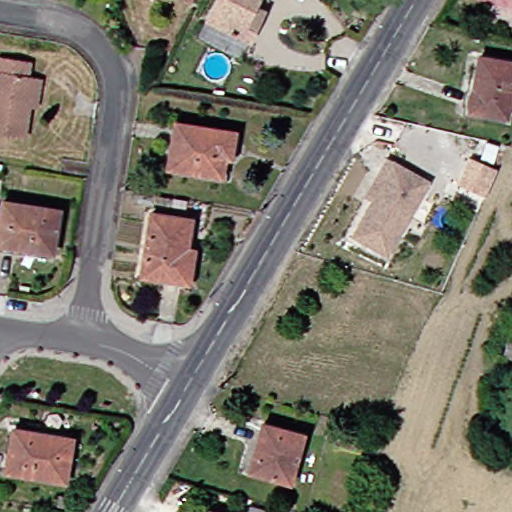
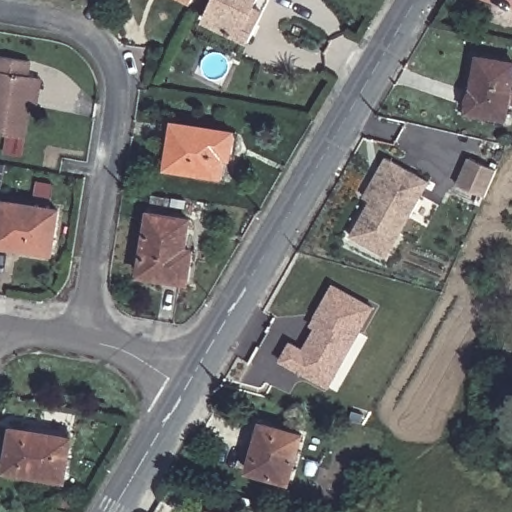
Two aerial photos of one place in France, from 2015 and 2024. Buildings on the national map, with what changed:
unchanged [(186,0),(193,0),(191,3),(186,0)]
unchanged [(258,0),(257,2),(254,7),(263,12),(251,36),(249,40),(222,27),(205,19),(208,12),(214,0),(258,0)]
unchanged [(47,78),(43,107),(34,106),(29,136),(0,132),(0,77),(3,56),(36,61),(33,76),(38,77),(47,78)]
unchanged [(469,108),(469,104),(469,99),(470,94),(475,86),(480,56),(512,62),(512,84),(506,115),(469,108)]
unchanged [(238,137),(235,162),(228,161),(225,180),(172,170),(179,127),(232,136),(238,137)]
unchanged [(430,179),(389,255),(352,235),(372,199),(365,195),(379,170),(387,155),(430,179)]
unchanged [(52,252),(0,242),(0,218),(3,201),(59,210),(52,252)]
unchanged [(187,281),(141,272),(151,214),(189,220),(184,247),(192,249),(187,281)]
new [(315,383),(279,362),(288,345),(301,352),(313,331),(308,328),(314,318),(332,287),(371,309),(340,365),(326,389),(315,383)]
unchanged [(512,334),(512,356),(505,353),(512,334)]
unchanged [(66,366),(66,371),(51,369),(52,364),(66,366)]
unchanged [(290,481),(250,471),(262,424),(302,435),(290,481)]
unchanged [(63,482),(7,472),(13,428),(71,438),(63,482)]
unchanged [(284,512),(259,512),(261,505),(284,512)]
unchanged [(215,511),(220,512),(215,512),(215,511)]

